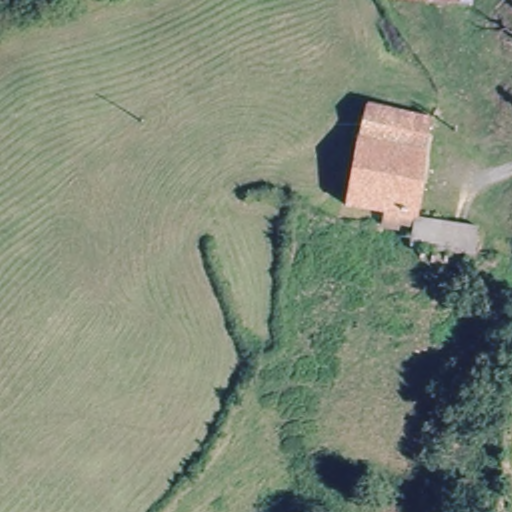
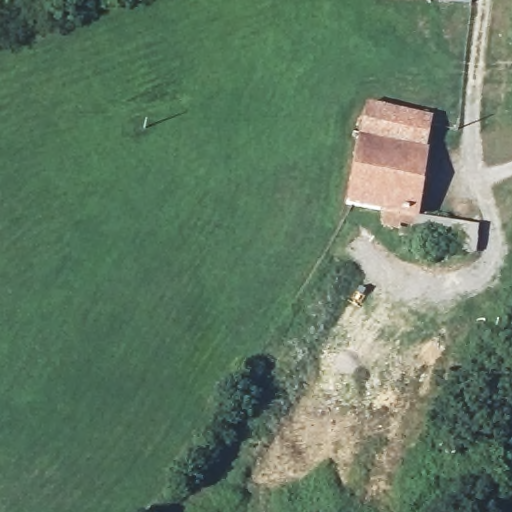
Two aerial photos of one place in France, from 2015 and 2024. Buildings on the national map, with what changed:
unchanged [(359,103),(430,114),(416,204),(380,199),(344,193),(359,103)]
unchanged [(470,244),(444,239),(413,235),(416,214),(400,211),(399,219),(378,216),(380,199),(416,204),(446,209),(475,213),(470,244)]

